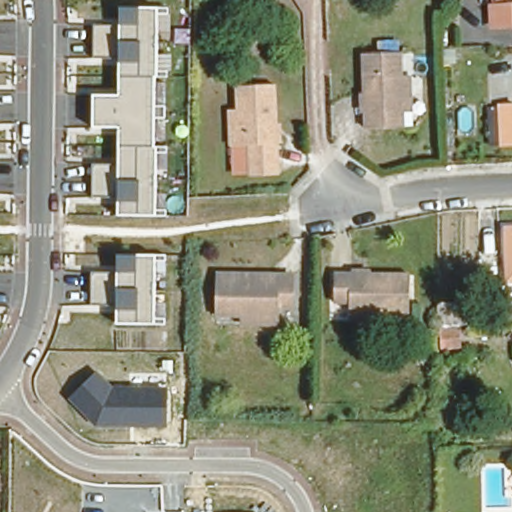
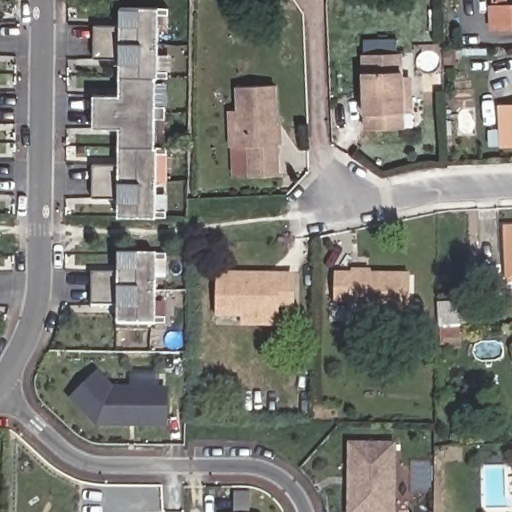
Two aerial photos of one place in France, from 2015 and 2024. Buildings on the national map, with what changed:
unchanged [(482,1),(500,0),(512,0),(512,21),(482,22),(482,1)]
unchanged [(158,216),(120,215),(120,198),(95,197),(95,166),(121,166),(122,127),(95,127),(95,95),(121,95),(122,58),(97,58),(97,27),(122,27),(122,8),(160,7),(158,216)]
unchanged [(407,106),(395,107),(395,124),(361,124),(359,49),(397,49),(397,70),(407,70),(407,106)]
unchanged [(242,173),(242,141),(229,142),(228,106),(237,105),(236,83),(274,82),(277,172),(242,173)]
unchanged [(494,103),(494,101),(512,100),(512,140),(497,140),(496,139),(485,140),(483,104),(494,103)]
unchanged [(503,221),(512,221),(512,273),(506,273),(503,221)]
unchanged [(157,325),(117,325),(117,306),(94,306),(94,274),(118,275),(118,255),(157,255),(157,325)]
unchanged [(238,311),(238,303),(212,303),(214,261),(252,262),(257,266),(291,267),(291,301),(274,300),(273,311),(238,311)]
unchanged [(342,310),(342,298),(326,298),(327,264),(401,265),(401,303),(378,302),(378,311),(342,310)]
unchanged [(465,300),(466,321),(440,323),(438,302),(465,300)]
unchanged [(458,346),(442,347),(441,325),(445,325),(457,325),(458,346)]
unchanged [(167,387),(167,427),(96,426),(70,398),(97,371),(113,386),(167,387)]
new [(346,512),(347,441),(395,441),(394,512),(346,512)]

